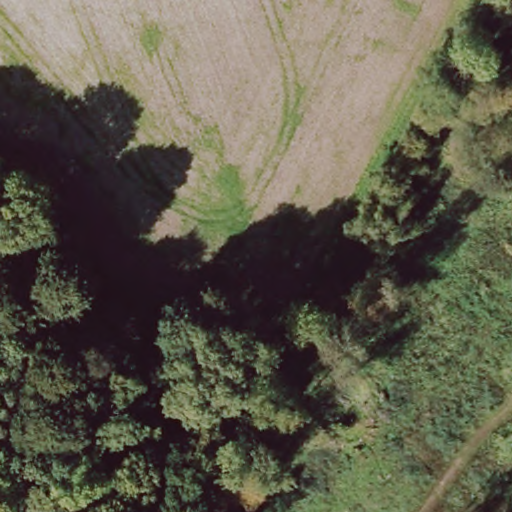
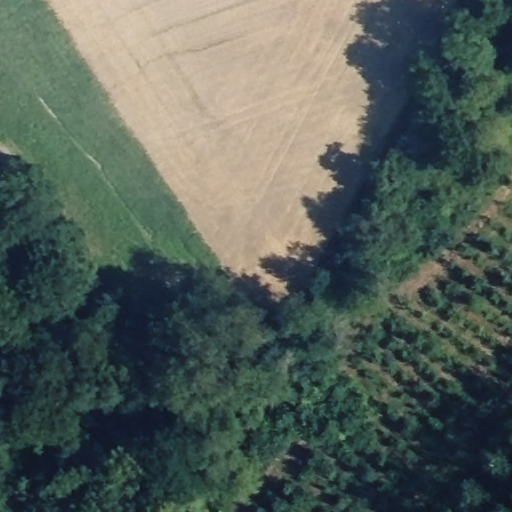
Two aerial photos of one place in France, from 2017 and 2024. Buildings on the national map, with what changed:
[]

